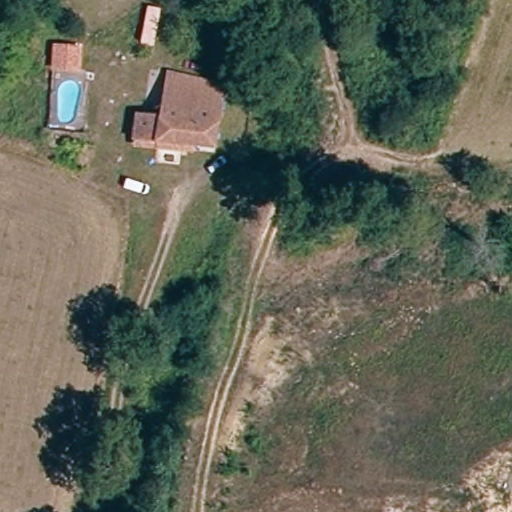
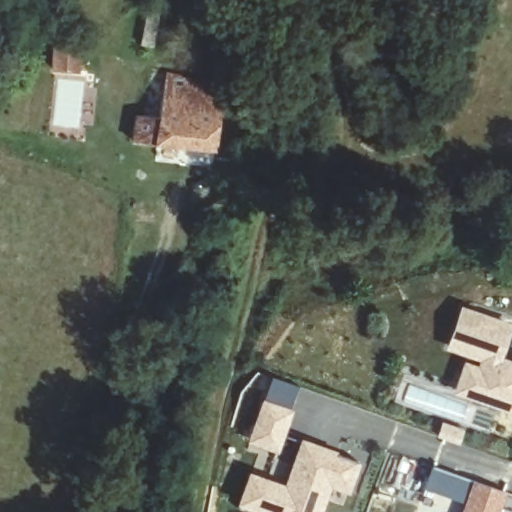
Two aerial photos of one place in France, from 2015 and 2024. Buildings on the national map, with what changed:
unchanged [(216,150),(136,141),(140,119),(159,121),(167,76),(216,85),(217,79),(229,80),(216,150)]
new [(463,361),(477,366),(480,360),(445,350),(462,305),(512,323),(512,329),(503,356),(512,360),(512,414),(452,393),(463,361)]
new [(247,441),(262,399),(293,410),(277,453),(247,441)]
new [(249,471),(284,484),(302,438),(337,451),(336,457),(361,465),(350,495),(332,488),(323,512),(258,512),(237,505),(249,471)]
new [(426,488),(433,467),(507,492),(501,512),(461,512),(465,503),(426,488)]

